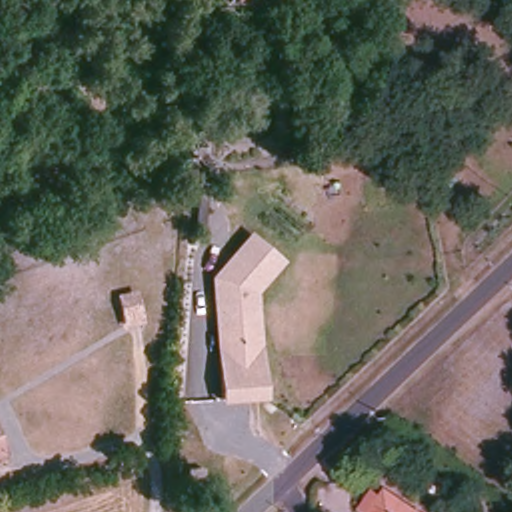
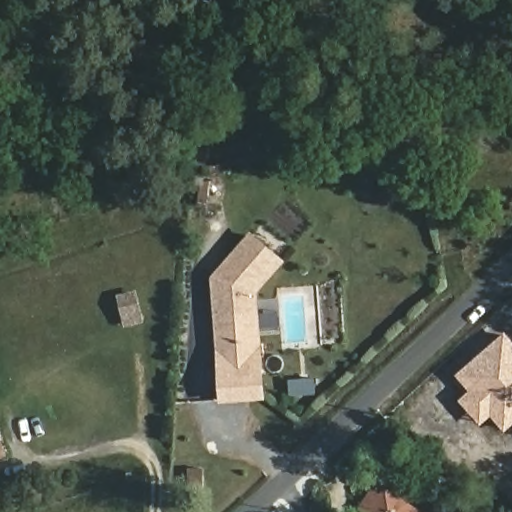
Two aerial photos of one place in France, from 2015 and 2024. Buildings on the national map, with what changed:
unchanged [(219,362),(211,278),(251,232),(285,262),(258,292),(260,358),(219,362)]
unchanged [(143,322),(124,326),(119,300),(136,296),(143,322)]
new [(512,339),(512,426),(505,433),(492,418),(482,427),(459,401),(469,391),(456,377),(506,332),(512,339)]
unchanged [(260,358),(262,398),(223,401),(219,362),(260,358)]
unchanged [(0,444),(4,455),(0,456),(0,444)]
unchanged [(203,471),(203,492),(189,492),(189,470),(203,471)]
unchanged [(419,512),(370,512),(365,510),(376,495),(385,499),(389,492),(419,512)]

